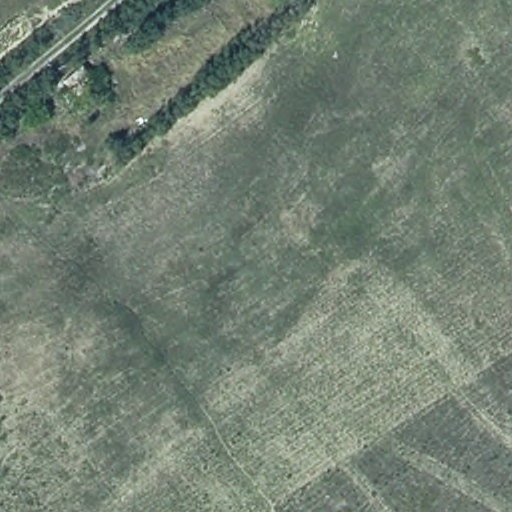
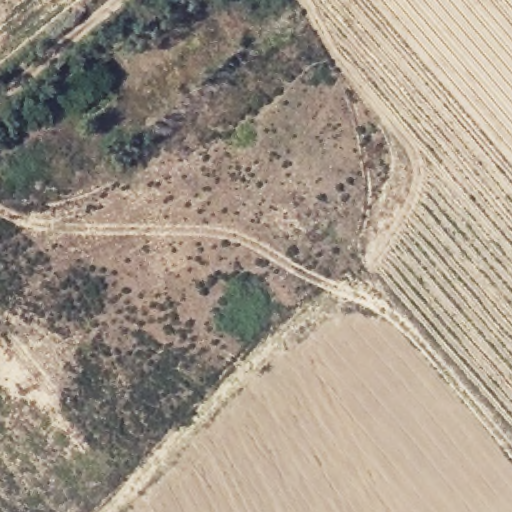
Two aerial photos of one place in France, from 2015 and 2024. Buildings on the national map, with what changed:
unchanged [(91,56),(103,74),(75,94),(65,81),(91,56)]

